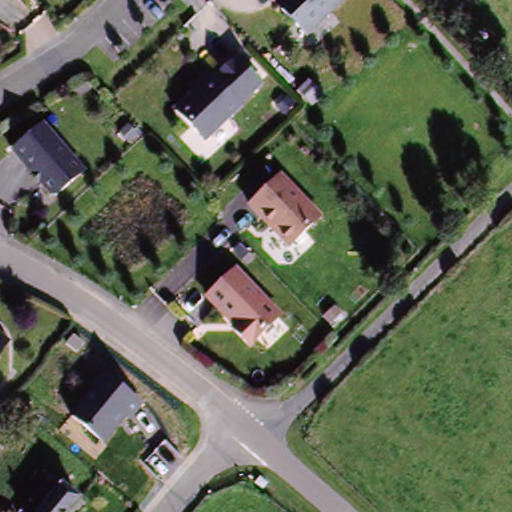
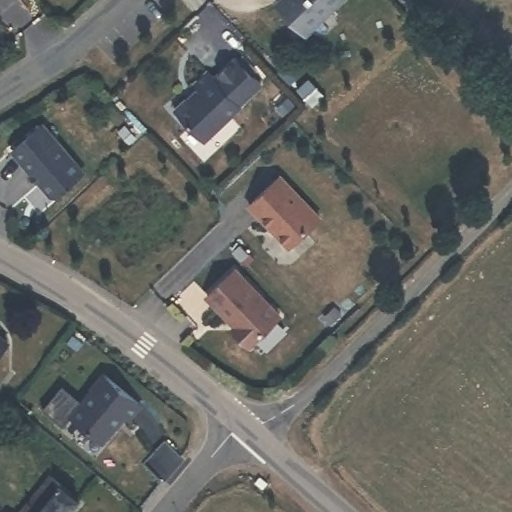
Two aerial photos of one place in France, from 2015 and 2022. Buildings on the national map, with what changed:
unchanged [(274,1),(276,0),(334,0),(301,30),(274,1)]
unchanged [(200,86),(196,82),(208,69),(214,75),(235,54),(261,79),(238,101),(241,103),(205,138),(174,107),(186,96),(188,100),(200,86)]
unchanged [(48,194),(37,180),(40,176),(31,168),(29,170),(10,147),(41,121),(81,170),(53,194),(48,194)]
unchanged [(290,244),(250,202),(281,173),(321,215),(290,244)]
unchanged [(248,343),(231,327),(234,325),(205,294),(233,267),(278,314),(248,343)]
unchanged [(0,352),(0,343),(4,346),(0,352)]
unchanged [(105,373),(143,404),(131,420),(125,416),(106,443),(69,415),(105,373)]
unchanged [(41,512),(53,498),(59,503),(71,490),(88,504),(81,512),(41,512)]
unchanged [(40,512),(35,512),(37,510),(40,512)]

